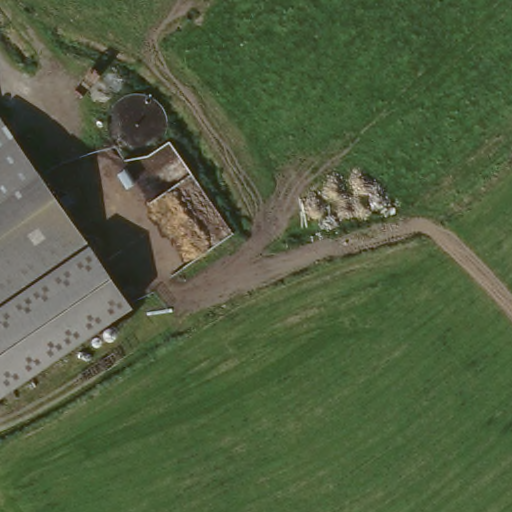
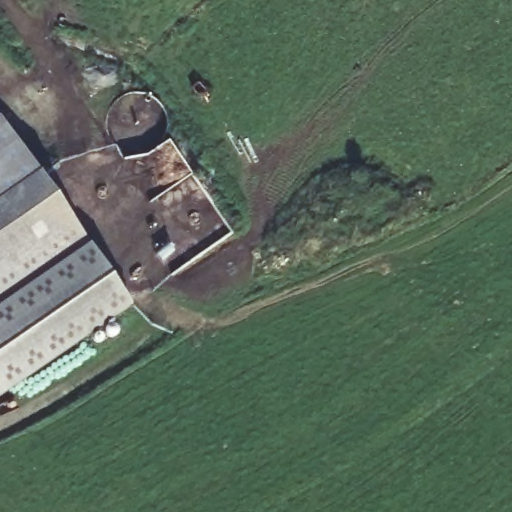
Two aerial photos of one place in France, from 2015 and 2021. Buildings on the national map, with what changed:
unchanged [(0,128),(35,177),(0,203),(0,128)]
unchanged [(129,311),(0,403),(0,203),(35,177),(129,311)]

